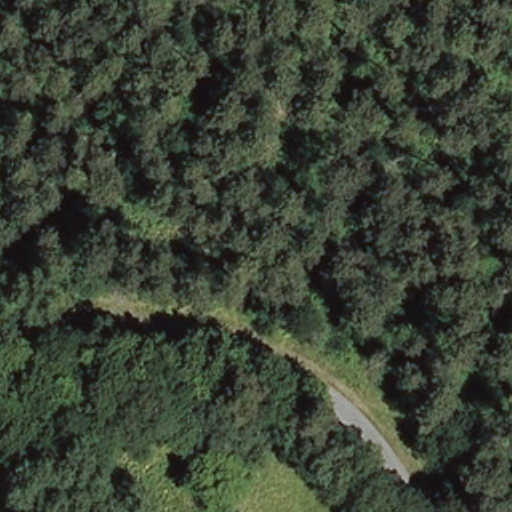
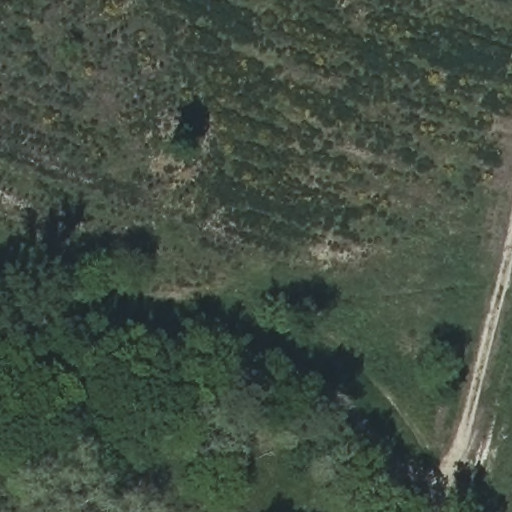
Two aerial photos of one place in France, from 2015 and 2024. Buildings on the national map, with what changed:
[]

